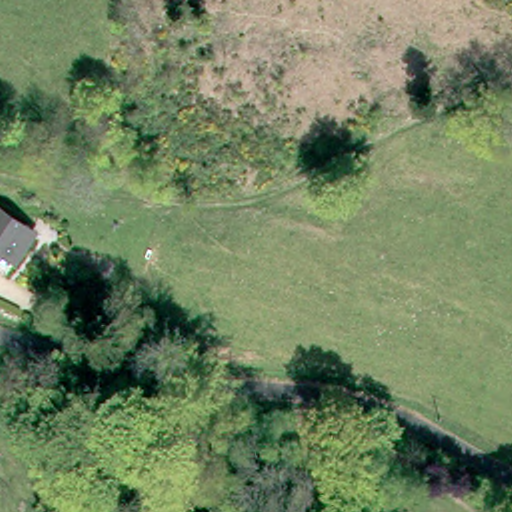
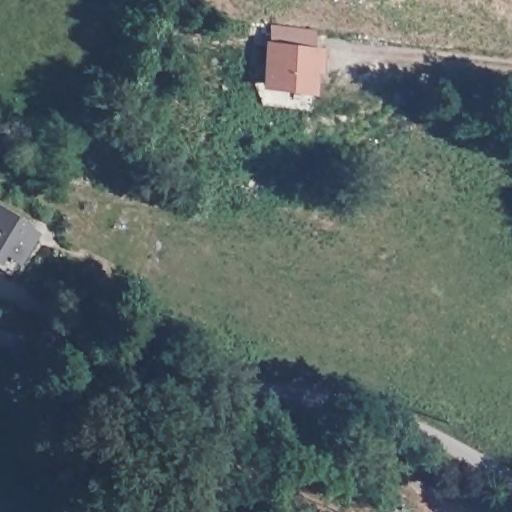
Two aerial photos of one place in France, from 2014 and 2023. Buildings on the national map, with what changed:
new [(263,40),(270,41),(272,25),(316,30),(315,47),(325,48),(322,74),(314,73),(312,93),(257,87),(263,40)]
unchanged [(14,252),(1,266),(0,266),(0,203),(27,225),(33,231),(19,246),(14,252)]

